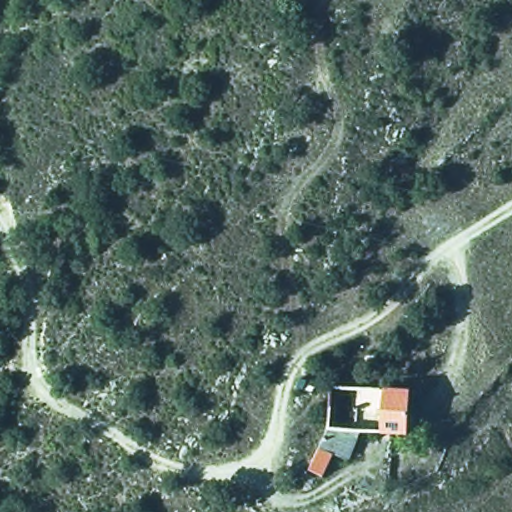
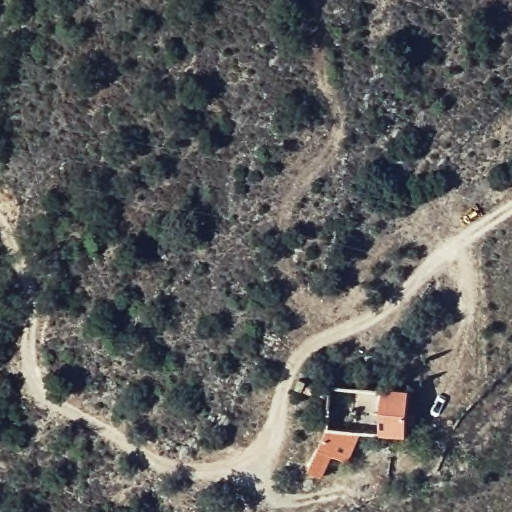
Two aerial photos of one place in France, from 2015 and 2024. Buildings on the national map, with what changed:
unchanged [(324,429),(377,432),(379,417),(356,415),(356,389),(412,392),(410,441),(387,441),(387,453),(355,453),(352,462),(338,461),(330,481),(309,470),(324,429)]

